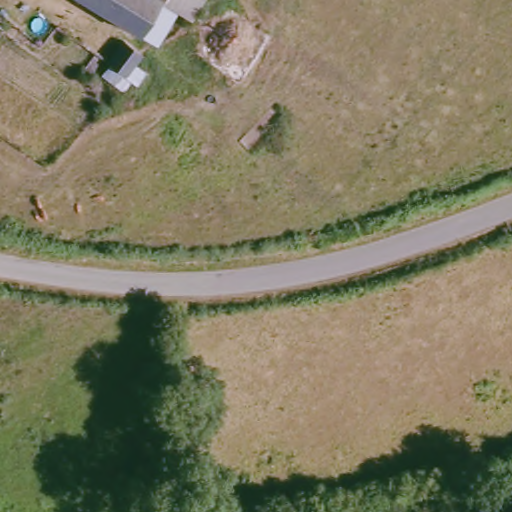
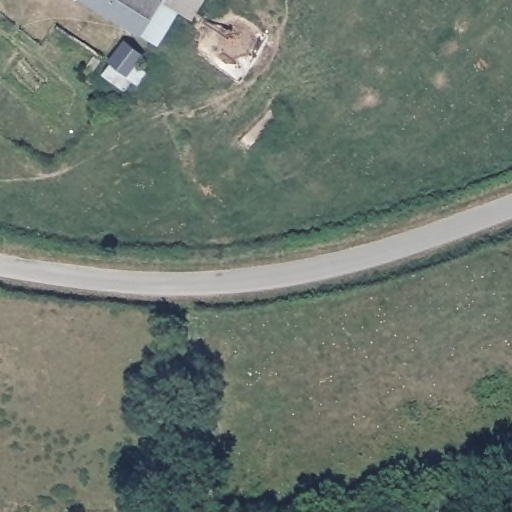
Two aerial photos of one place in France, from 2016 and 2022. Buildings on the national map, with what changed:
unchanged [(162,49),(82,0),(192,0),(185,16),(162,49)]
unchanged [(185,16),(192,0),(209,0),(195,21),(185,16)]
unchanged [(108,75),(116,64),(113,62),(130,44),(148,54),(140,66),(150,74),(142,83),(131,75),(120,86),(108,75)]

